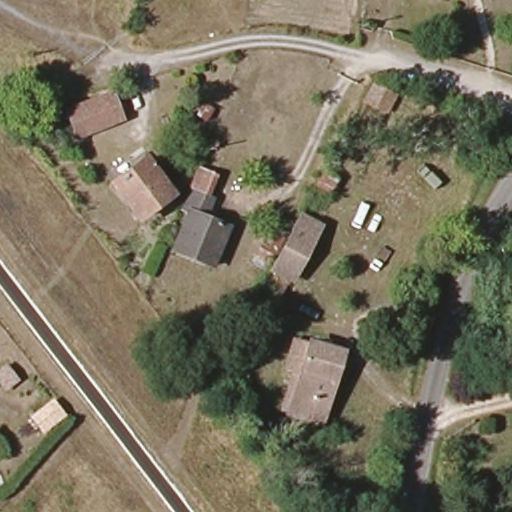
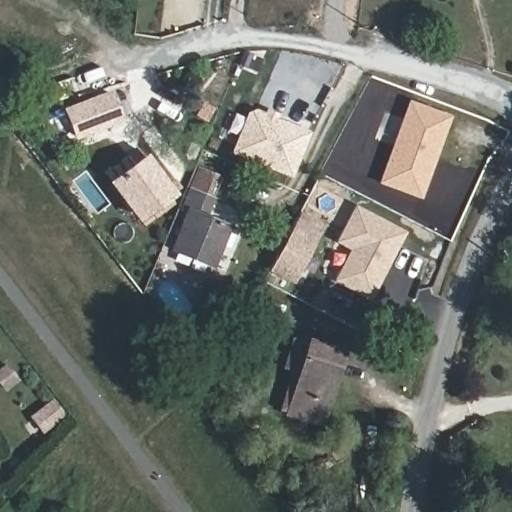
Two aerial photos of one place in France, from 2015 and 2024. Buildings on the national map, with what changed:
demolished [(398,96),(390,118),(366,105),(376,84),(398,96)]
unchanged [(119,116),(80,136),(66,112),(106,93),(119,116)]
new [(408,100),(451,116),(421,199),(378,183),(408,100)]
new [(249,107),(310,132),(291,178),(230,153),(249,107)]
unchanged [(175,195),(139,223),(109,183),(147,156),(175,195)]
unchanged [(210,197),(203,217),(224,229),(211,262),(172,246),(186,207),(180,204),(188,186),(210,197)]
new [(395,247),(398,248),(370,302),(334,283),(351,253),(334,243),(354,206),(403,231),(395,247)]
unchanged [(293,286),(288,285),(279,301),(260,291),(267,277),(254,269),(270,232),(283,238),(300,214),(326,225),(293,286)]
unchanged [(324,426),(283,413),(292,372),(283,370),(291,340),(346,350),(324,426)]

